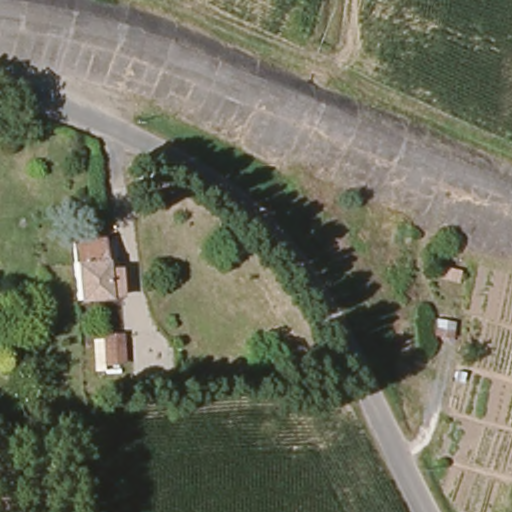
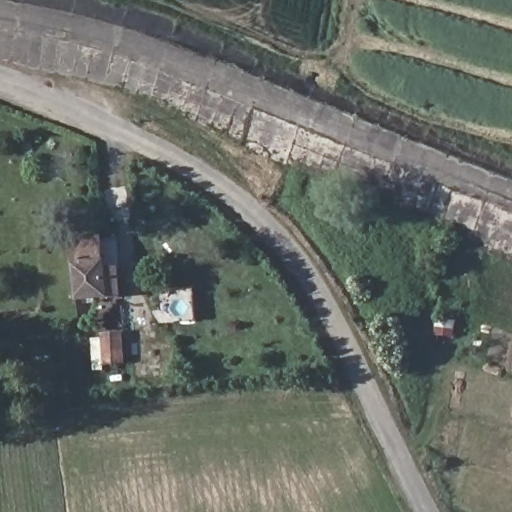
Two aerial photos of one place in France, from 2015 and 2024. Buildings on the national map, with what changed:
unchanged [(111,272),(122,272),(124,302),(80,302),(78,276),(75,242),(108,242),(111,272)]
unchanged [(123,361),(111,362),(112,368),(105,368),(104,345),(103,340),(122,340),(123,361)]

